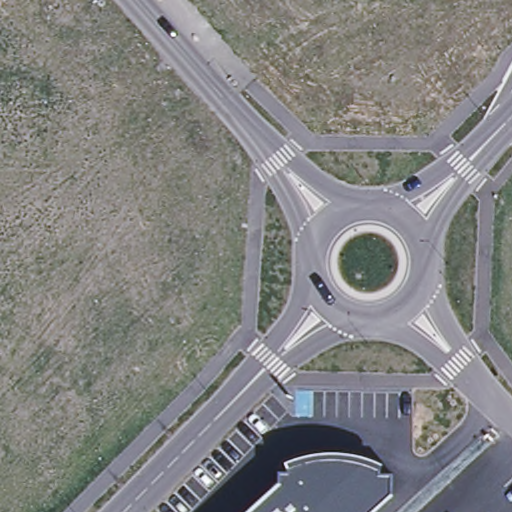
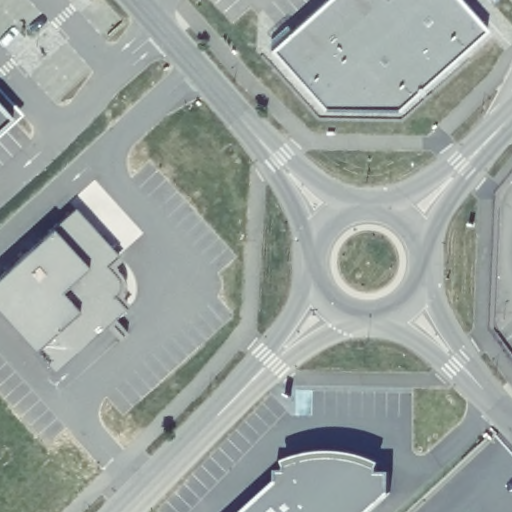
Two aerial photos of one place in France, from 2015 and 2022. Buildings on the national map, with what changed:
new [(56,0),(63,0),(59,3),(56,0)]
new [(460,0),(487,30),(397,111),(323,110),(270,50),(326,0),(460,0)]
new [(0,127),(0,108),(10,118),(0,127)]
new [(121,259),(115,265),(123,276),(126,284),(124,294),(118,301),(125,309),(114,319),(127,333),(120,341),(106,326),(54,372),(35,351),(0,313),(0,275),(75,208),(121,259)]
unchanged [(390,472),(390,490),(367,512),(242,512),(277,480),(277,469),(283,469),(283,458),(300,452),(317,449),(338,449),(356,452),(378,459),(377,472),(390,472)]

